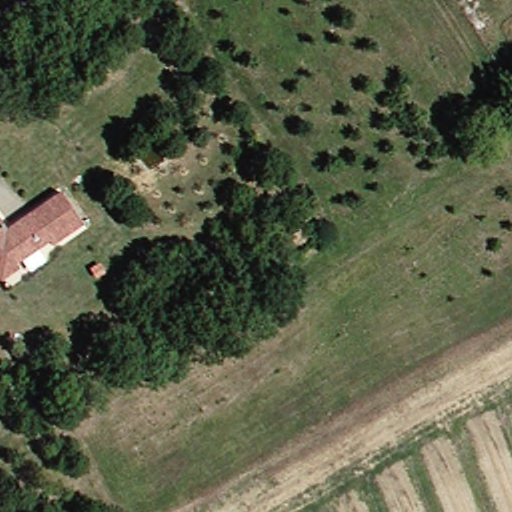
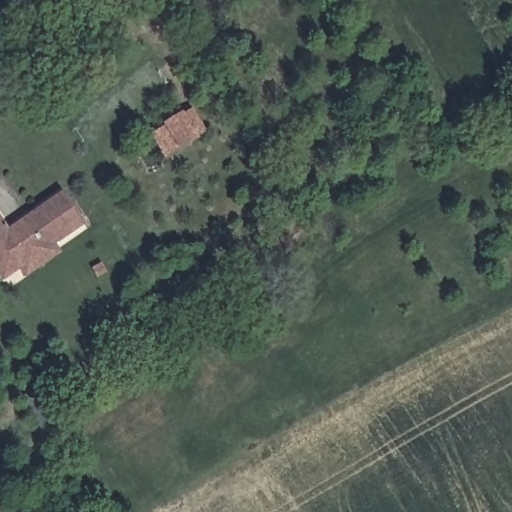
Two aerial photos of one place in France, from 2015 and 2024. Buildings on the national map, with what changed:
new [(207,131),(164,160),(149,136),(192,109),(207,131)]
unchanged [(5,286),(0,280),(0,223),(4,228),(9,236),(63,199),(86,230),(55,251),(52,247),(19,270),(22,275),(5,286)]

